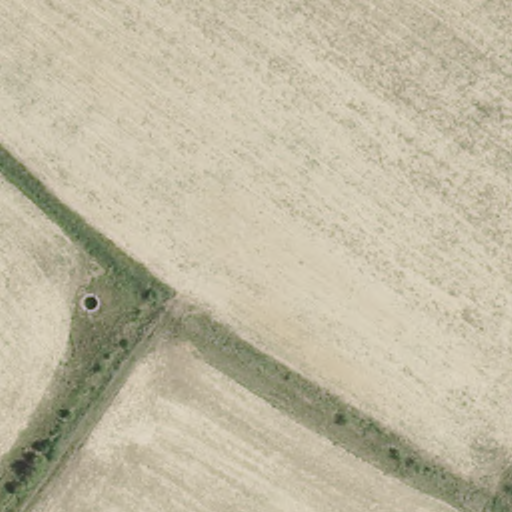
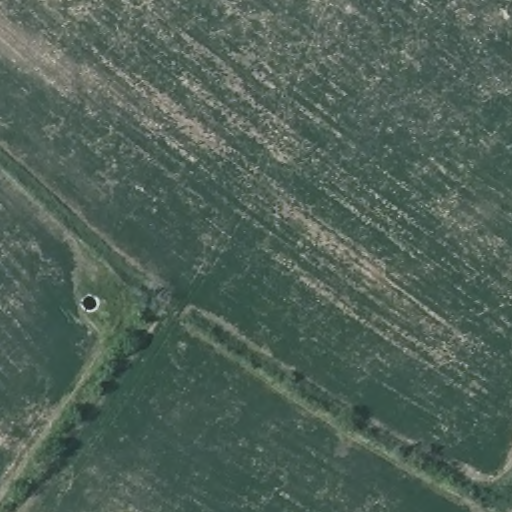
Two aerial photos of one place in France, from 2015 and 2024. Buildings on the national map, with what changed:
unchanged [(69,302),(74,289),(91,292),(86,311),(69,302)]

